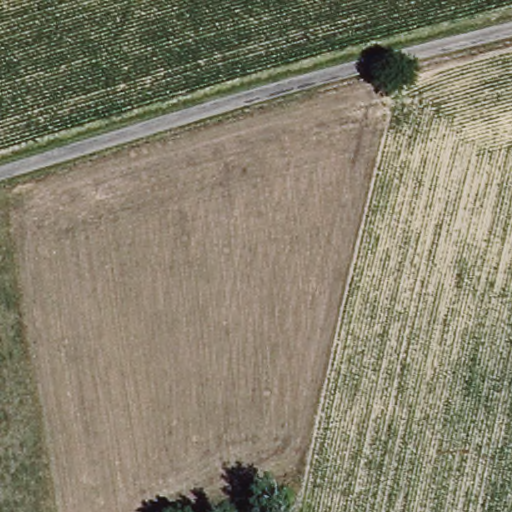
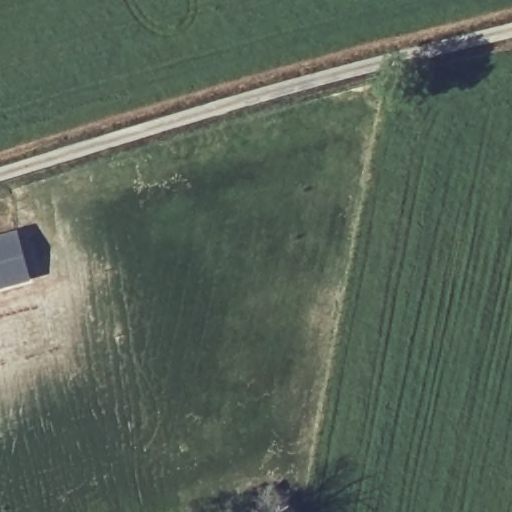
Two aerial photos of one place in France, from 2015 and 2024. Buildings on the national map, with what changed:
new [(31,279),(0,288),(0,235),(18,230),(31,279)]

